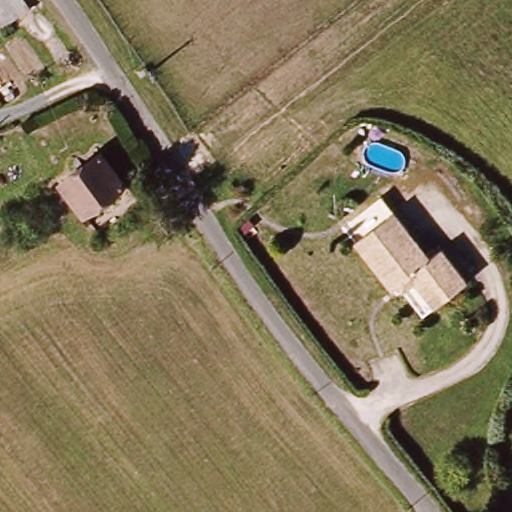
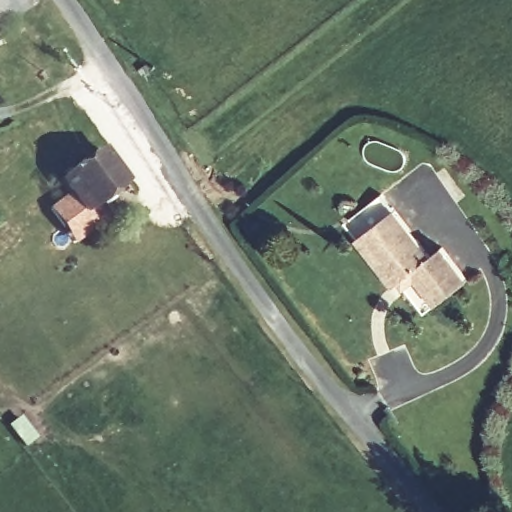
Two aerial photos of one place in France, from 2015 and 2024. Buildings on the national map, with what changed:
unchanged [(22,0),(0,16),(0,0),(22,0)]
unchanged [(85,211),(64,184),(102,155),(123,184),(85,211)]
unchanged [(368,241),(405,286),(400,292),(350,230),(386,200),(398,215),(368,241)]
unchanged [(435,260),(446,252),(472,283),(441,308),(422,285),(410,293),(405,286),(368,241),(398,215),(435,260)]

